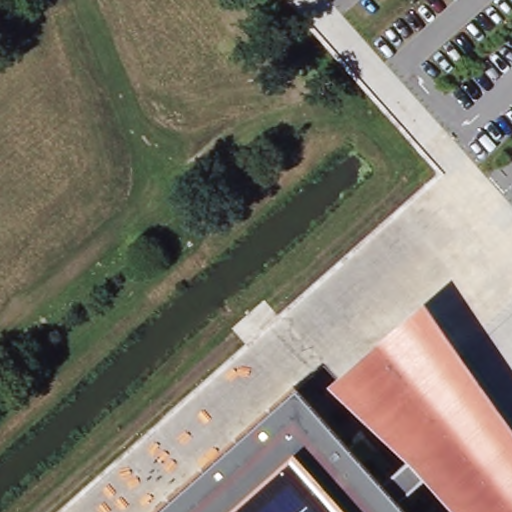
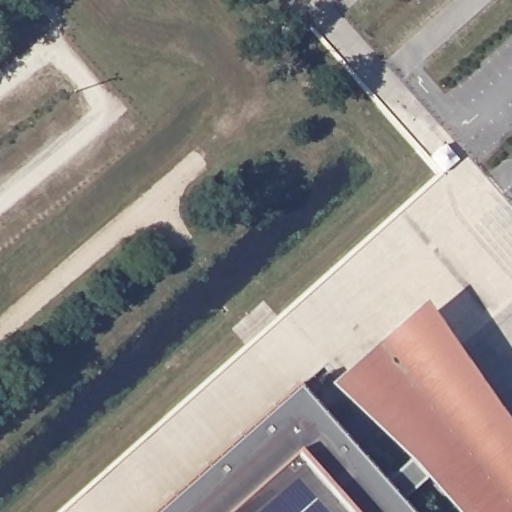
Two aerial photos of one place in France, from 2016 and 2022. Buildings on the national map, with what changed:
unchanged [(381,485),(406,463),(326,385),(422,302),(512,433),(512,512),(451,512),(423,480),(397,502),(407,512),(152,512),(293,385),(381,485)]

